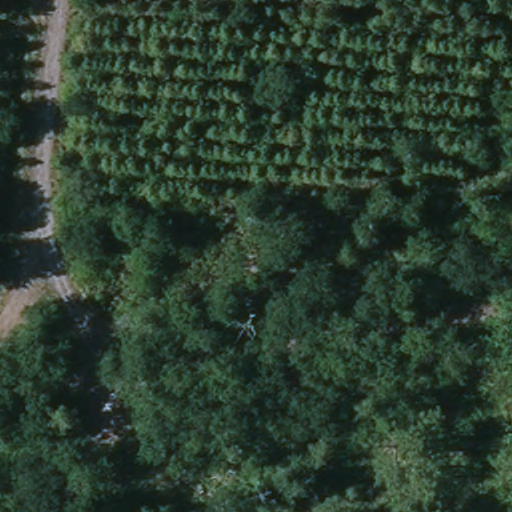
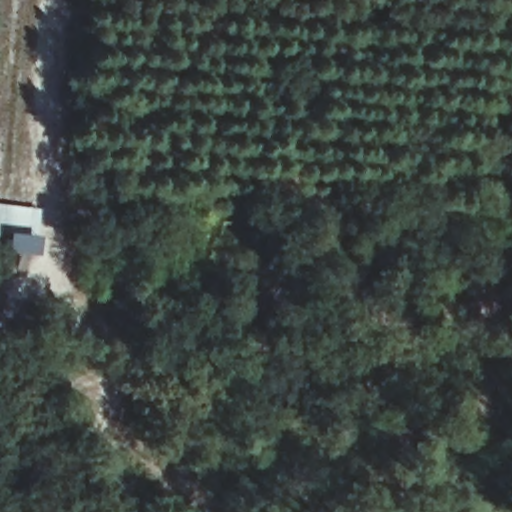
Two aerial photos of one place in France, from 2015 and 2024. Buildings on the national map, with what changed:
new [(7,253),(9,235),(0,233),(0,205),(40,210),(35,257),(7,253)]

